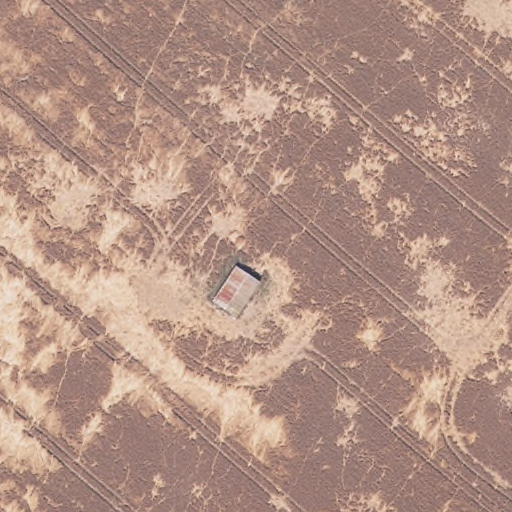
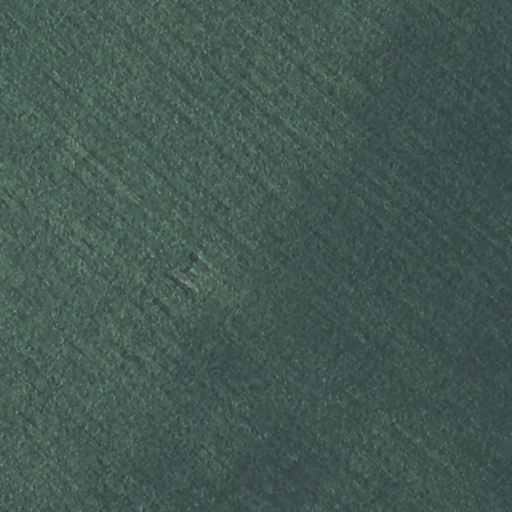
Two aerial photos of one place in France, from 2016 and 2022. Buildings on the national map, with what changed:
demolished [(262,280),(238,318),(214,302),(239,265),(262,280)]

